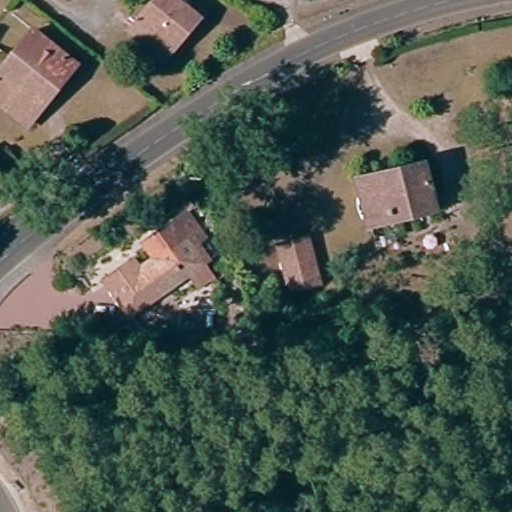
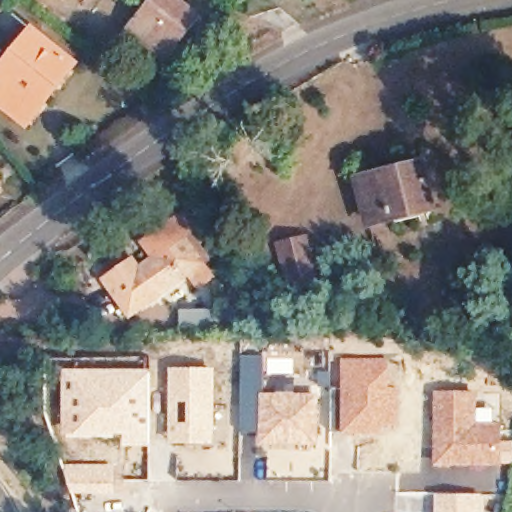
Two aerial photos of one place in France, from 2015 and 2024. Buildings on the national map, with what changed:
unchanged [(65,3),(61,0),(67,0),(65,3)]
unchanged [(138,25),(159,0),(172,0),(198,21),(164,62),(146,48),(130,35),(138,25)]
unchanged [(0,102),(0,76),(34,32),(76,65),(52,95),(27,124),(0,102)]
unchanged [(432,211),(370,228),(360,182),(381,176),(400,171),(420,166),(432,211)]
unchanged [(0,188),(0,187),(1,188),(0,188)]
unchanged [(200,294),(191,281),(133,321),(109,282),(136,263),(143,274),(159,264),(147,246),(177,226),(191,217),(201,232),(187,241),(207,271),(216,284),(200,294)]
unchanged [(318,282),(291,290),(279,245),(287,243),(297,240),(306,238),(318,282)]
new [(177,308),(212,308),(212,330),(177,330),(177,308)]
new [(390,356),(391,385),(397,385),(398,431),(341,433),(340,357),(390,356)]
new [(171,442),(170,367),(216,366),(215,443),(171,442)]
new [(150,369),(151,445),(122,446),(122,437),(63,437),(62,367),(150,369)]
new [(436,390),(479,391),(478,422),(503,422),(502,465),(436,465),(436,390)]
new [(261,392),(319,393),(317,443),(260,444),(261,392)]
new [(116,463),(117,490),(70,487),(64,462),(116,463)]
new [(483,493),(484,512),(436,512),(436,493),(483,493)]

